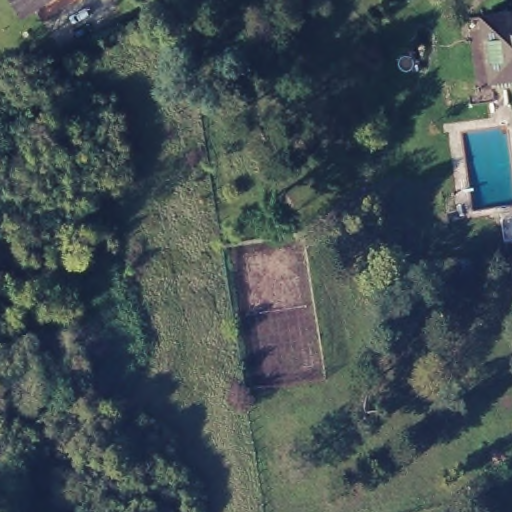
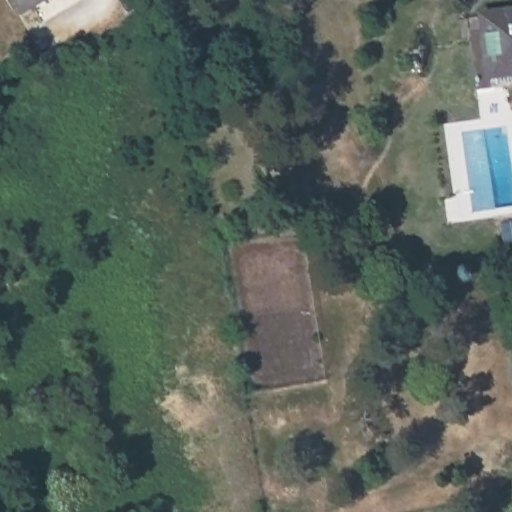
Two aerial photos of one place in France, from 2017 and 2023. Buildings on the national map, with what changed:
unchanged [(12,0),(35,0),(18,10),(12,0)]
unchanged [(404,0),(423,0),(424,5),(413,6),(405,7),(404,0)]
unchanged [(485,64),(477,18),(512,12),(512,73),(510,74),(488,78),(485,64)]
unchanged [(292,211),(307,219),(302,230),(286,221),(292,211)]
unchanged [(500,231),(512,226),(512,250),(507,252),(500,231)]
unchanged [(0,268),(0,234),(15,261),(0,268)]

